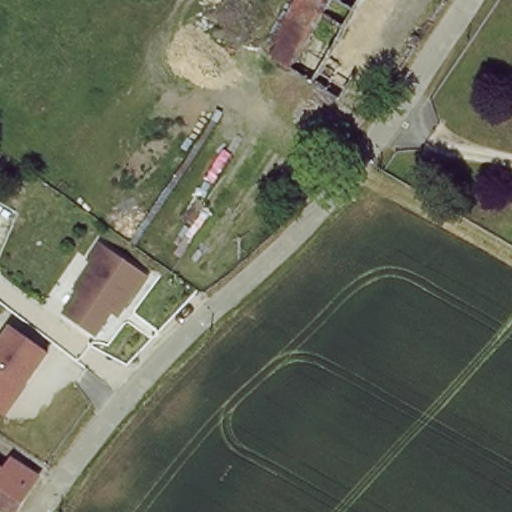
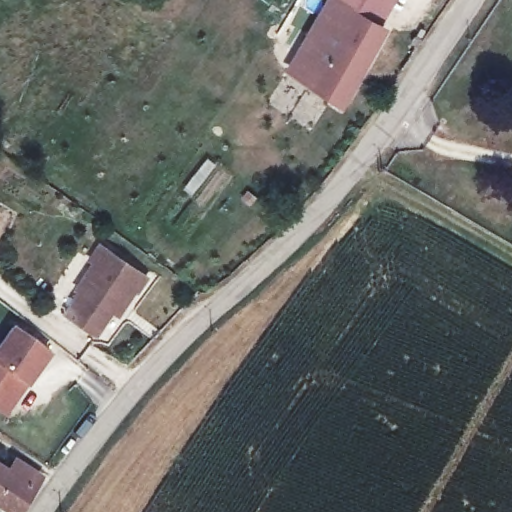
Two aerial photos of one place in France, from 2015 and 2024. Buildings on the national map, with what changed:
new [(365,0),(394,0),(383,20),(393,26),(347,107),(285,69),(327,0),(352,0),(362,6),(365,0)]
unchanged [(97,339),(72,319),(67,315),(82,294),(78,292),(87,279),(97,265),(92,261),(103,246),(149,282),(138,296),(137,295),(125,311),(119,320),(113,316),(97,339)]
unchanged [(0,413),(0,342),(9,329),(52,355),(7,417),(0,413)]
unchanged [(35,494),(22,512),(0,512),(0,451),(16,464),(25,451),(50,470),(44,481),(35,494)]

